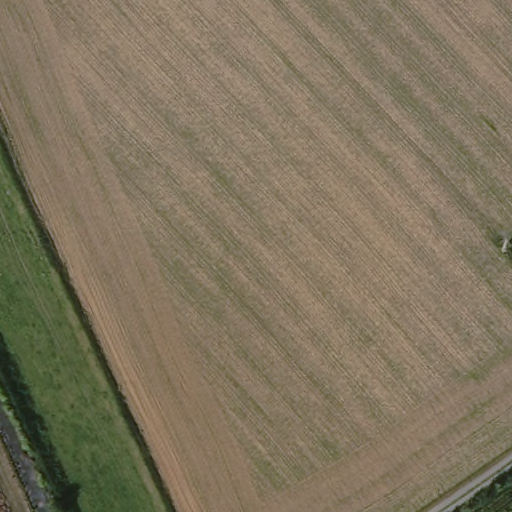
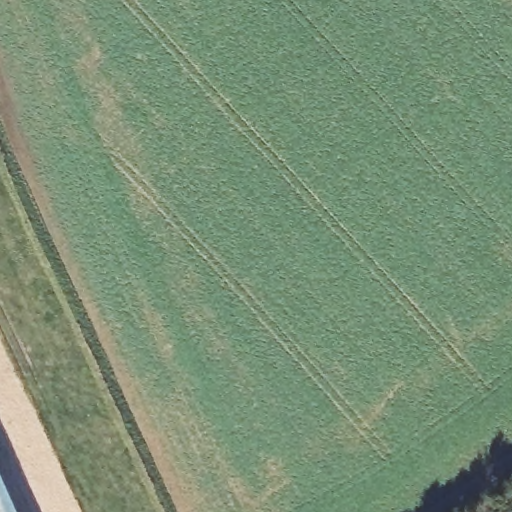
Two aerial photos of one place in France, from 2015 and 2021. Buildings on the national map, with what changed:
new [(14,512),(0,512),(0,480),(14,512)]

